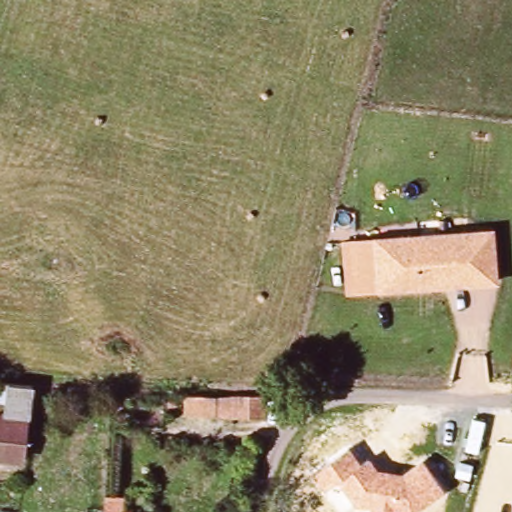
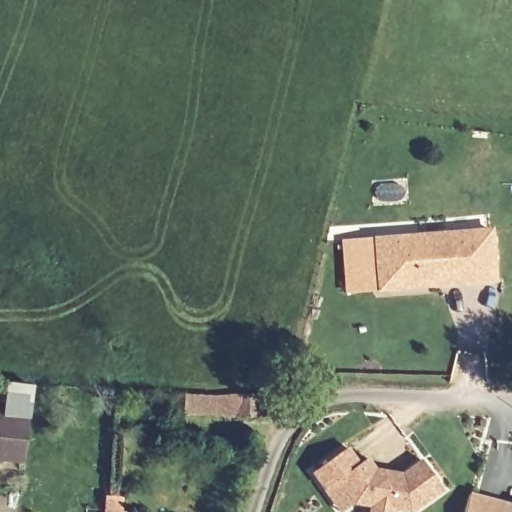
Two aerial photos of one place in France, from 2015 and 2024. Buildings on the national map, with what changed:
unchanged [(342,245),(495,227),(496,278),(345,295),(342,245)]
unchanged [(0,457),(0,402),(2,402),(6,385),(31,391),(30,404),(26,458),(10,457),(0,457)]
unchanged [(183,391),(267,395),(264,418),(181,415),(183,391)]
unchanged [(376,469),(402,472),(421,460),(444,492),(415,512),(369,512),(370,507),(355,506),(338,480),(324,490),(313,472),(348,447),(360,463),(369,458),(376,469)]
new [(470,491),(512,504),(512,512),(465,512),(470,491)]

